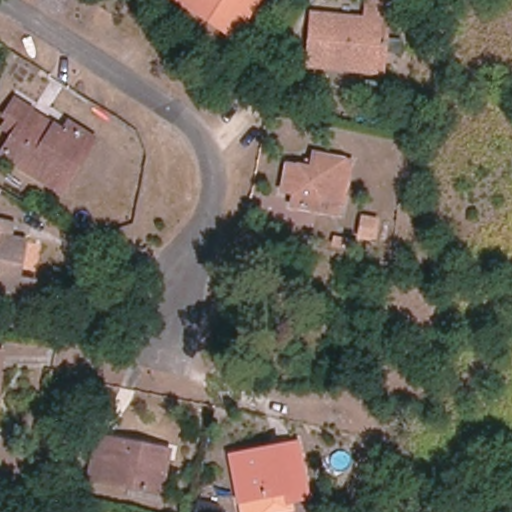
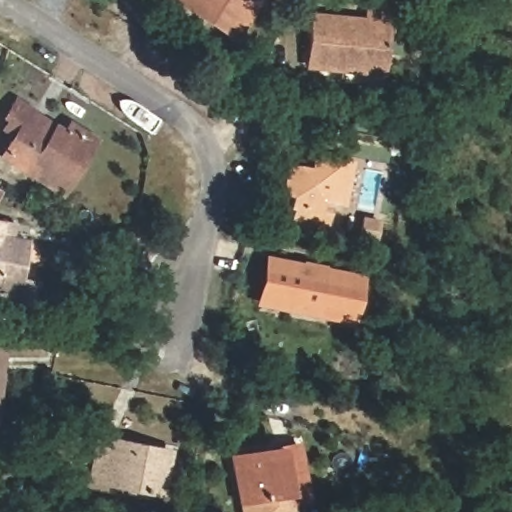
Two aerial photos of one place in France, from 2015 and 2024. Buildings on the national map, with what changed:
unchanged [(212,13),(209,19),(180,0),(256,0),(237,29),(212,13)]
unchanged [(307,67),(312,14),(366,19),(368,0),(390,0),(382,74),(307,67)]
unchanged [(35,111),(34,114),(62,133),(69,124),(87,136),(65,171),(72,175),(61,192),(4,155),(15,138),(4,129),(9,120),(5,118),(16,100),(35,111)]
unchanged [(294,195),(282,193),(287,165),(298,168),(299,166),(311,169),(315,154),(345,161),(352,163),(344,204),(321,199),(318,212),(292,207),(294,195)]
unchanged [(363,219),(378,222),(375,241),(360,238),(363,219)]
unchanged [(27,240),(20,279),(36,283),(32,307),(0,300),(0,221),(16,224),(14,238),(27,240)]
unchanged [(337,243),(351,246),(350,253),(335,250),(337,243)]
new [(315,312),(261,299),(271,258),(358,278),(352,308),(349,319),(315,312)]
unchanged [(4,354),(0,378),(0,354),(4,354)]
unchanged [(162,494),(90,479),(97,438),(146,448),(144,458),(168,462),(162,494)]
unchanged [(239,498),(231,458),(300,445),(309,496),(290,500),(291,507),(260,512),(241,512),(239,498)]
unchanged [(220,512),(188,512),(189,501),(221,506),(220,512)]

